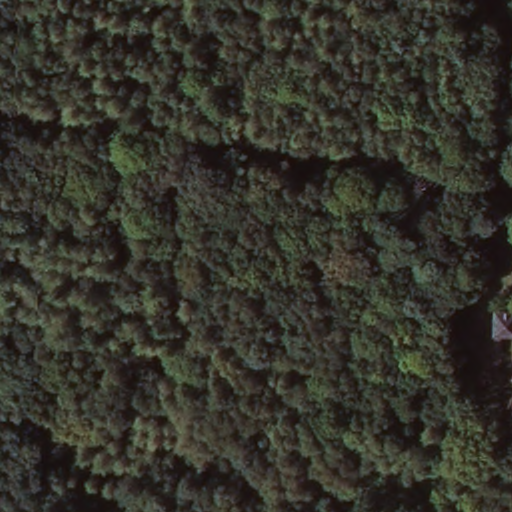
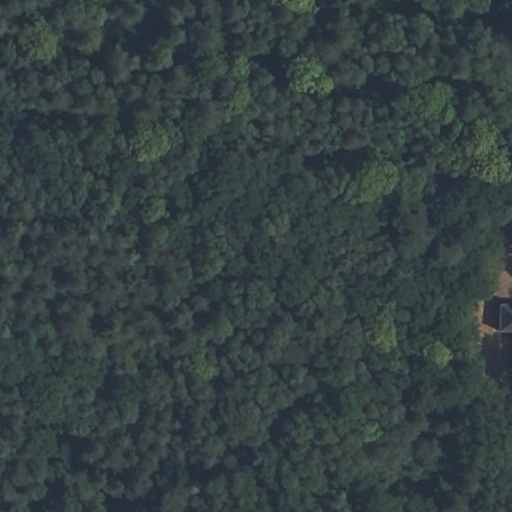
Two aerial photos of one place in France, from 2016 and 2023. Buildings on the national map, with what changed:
unchanged [(512,330),(496,329),(497,304),(512,304),(512,330)]

